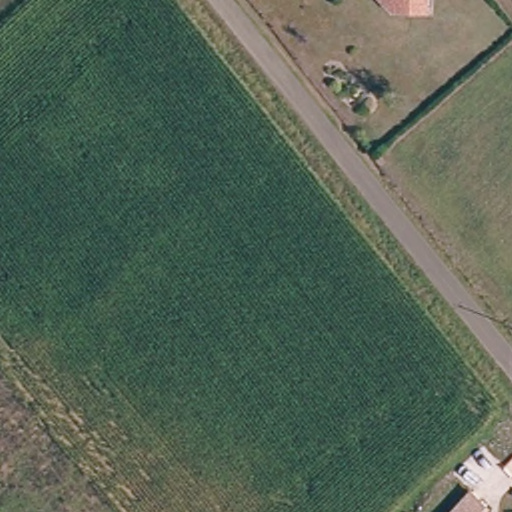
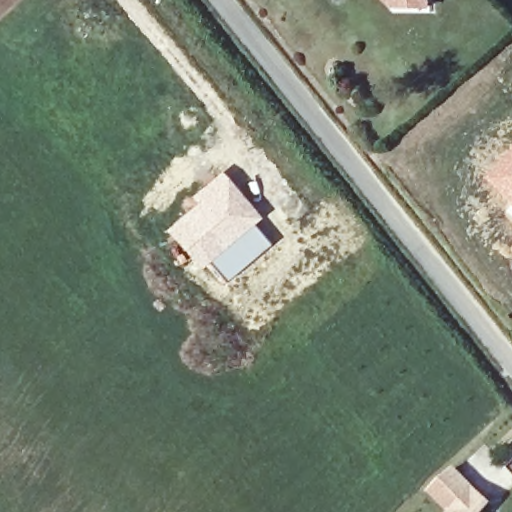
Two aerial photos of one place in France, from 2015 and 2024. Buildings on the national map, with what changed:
new [(512,151),(512,203),(487,179),(512,151)]
new [(192,202),(188,197),(218,171),(257,217),(249,224),(266,244),(222,282),(204,262),(193,271),(159,231),(192,202)]
unchanged [(479,490),(495,504),(487,512),(458,512),(479,490)]

